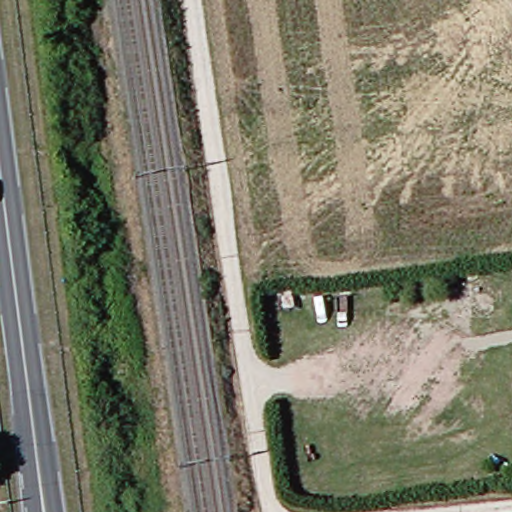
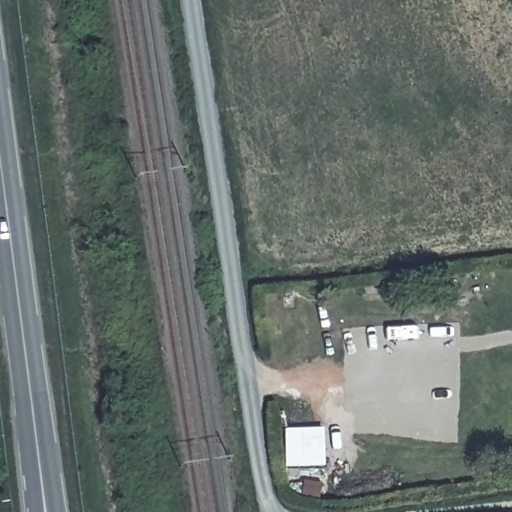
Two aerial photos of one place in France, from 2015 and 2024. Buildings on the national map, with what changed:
demolished [(482,313),(466,314),(464,290),(480,289),(482,313)]
new [(325,468),(286,468),(286,430),(325,430),(325,468)]

